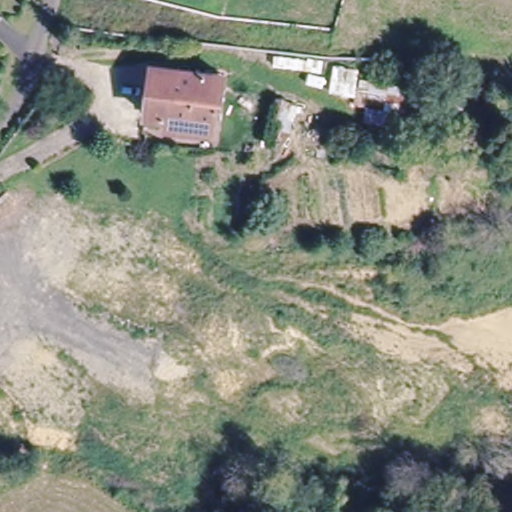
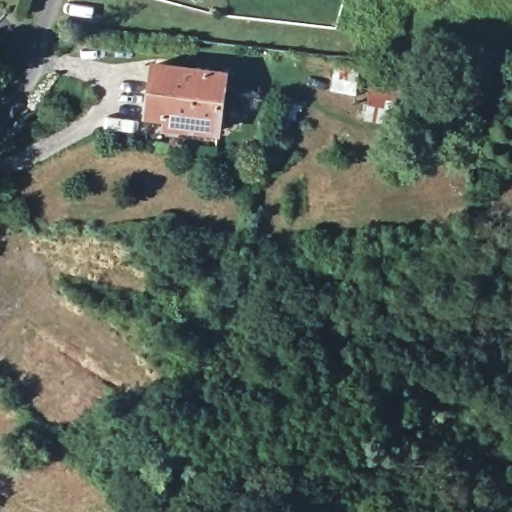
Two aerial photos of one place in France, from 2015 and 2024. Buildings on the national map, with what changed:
unchanged [(231,76),(216,121),(147,101),(159,55),(231,76)]

